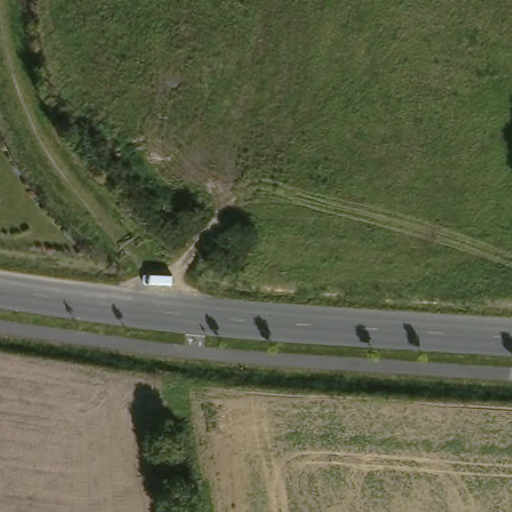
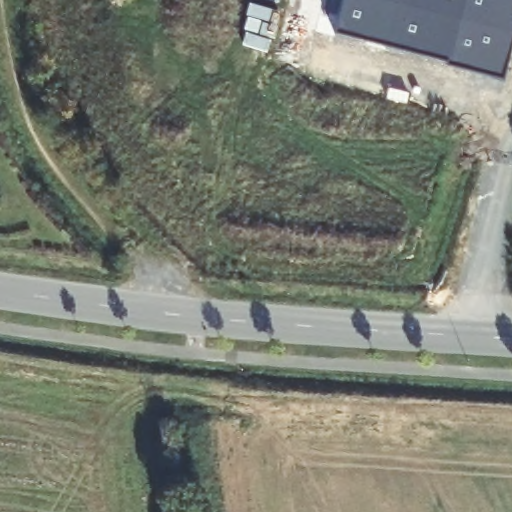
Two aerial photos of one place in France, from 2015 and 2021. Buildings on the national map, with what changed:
new [(512,48),(508,65),(493,62),(491,71),(383,44),(394,0),(512,0),(512,48)]

